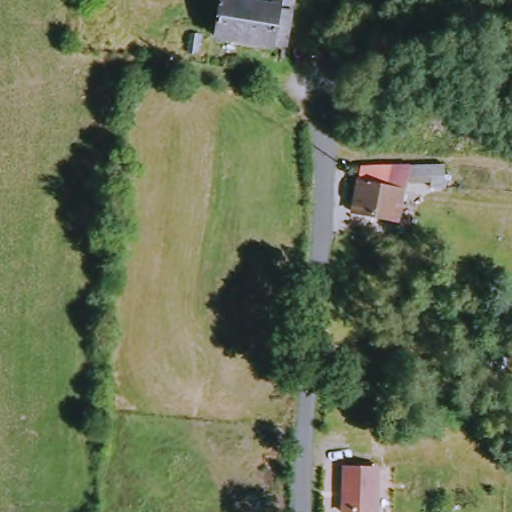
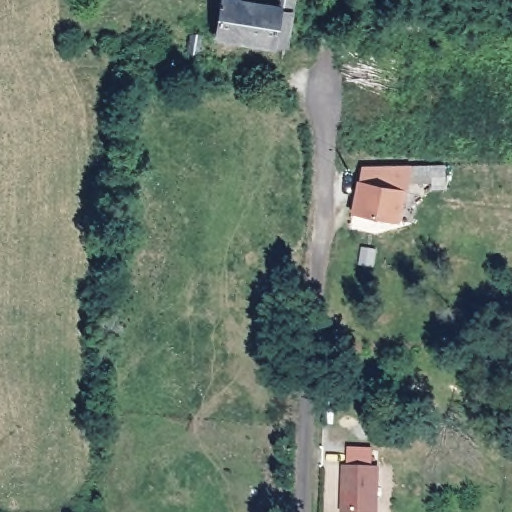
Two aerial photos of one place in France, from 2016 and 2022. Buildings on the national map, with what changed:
unchanged [(271,0),(282,2),(282,0),(297,0),(292,42),(278,42),(277,46),(223,35),(228,0),(271,0)]
unchanged [(412,162),(438,164),(437,185),(412,185),(405,221),(353,211),(365,178),(365,161),(412,162)]
unchanged [(377,472),(375,512),(343,512),(344,471),(377,472)]

